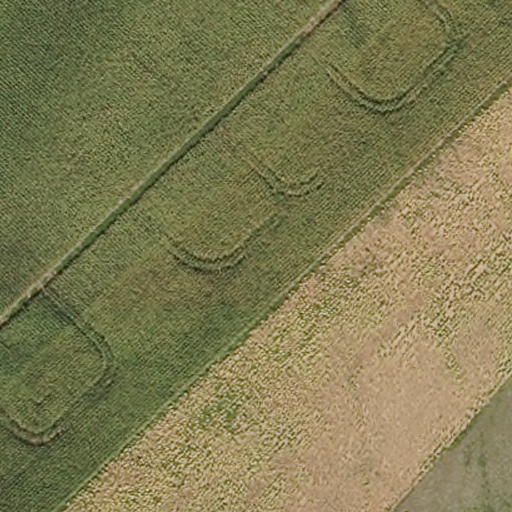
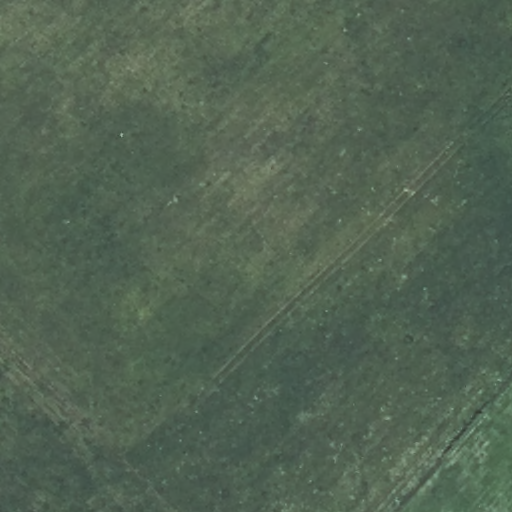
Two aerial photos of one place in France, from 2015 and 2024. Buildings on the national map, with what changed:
[]

